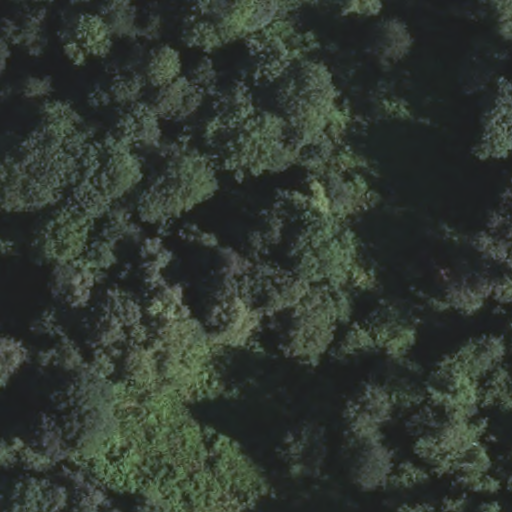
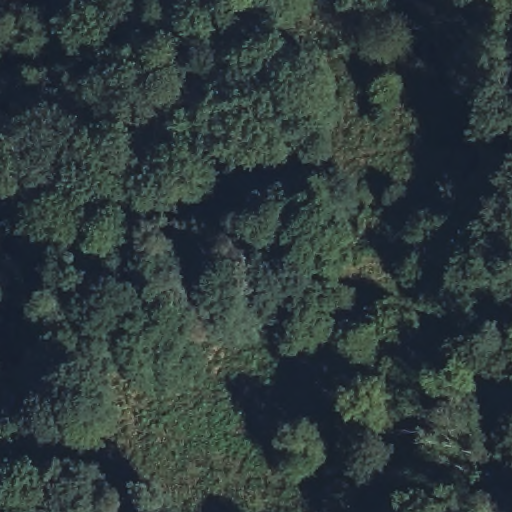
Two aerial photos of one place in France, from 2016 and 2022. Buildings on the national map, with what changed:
unchanged [(429,240),(452,275),(425,297),(402,263),(429,240)]

